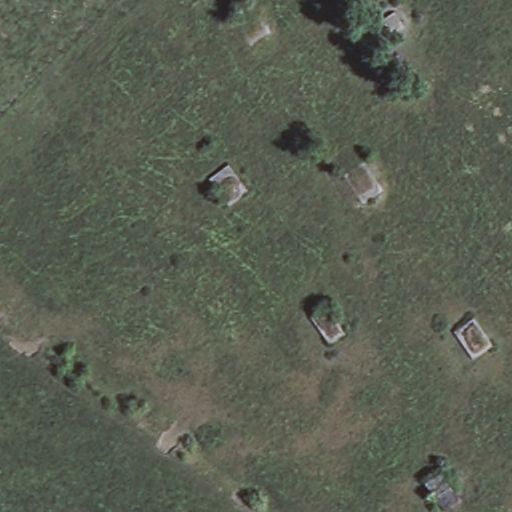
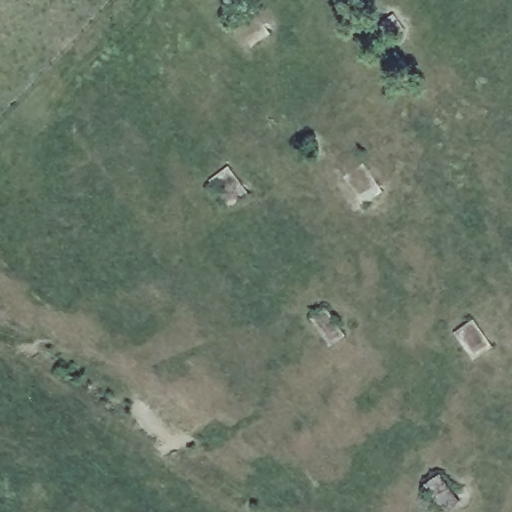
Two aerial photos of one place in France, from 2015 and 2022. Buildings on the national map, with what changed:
unchanged [(271,32),(253,44),(230,21),(250,5),(271,32)]
unchanged [(382,188),(360,202),(342,177),(365,162),(382,188)]
unchanged [(242,179),(235,187),(242,200),(230,208),(209,180),(231,166),(242,179)]
unchanged [(350,334),(332,343),(313,319),(328,306),(350,334)]
unchanged [(493,346),(476,359),(453,333),(475,318),(493,346)]
unchanged [(462,501),(445,511),(425,485),(442,473),(462,501)]

